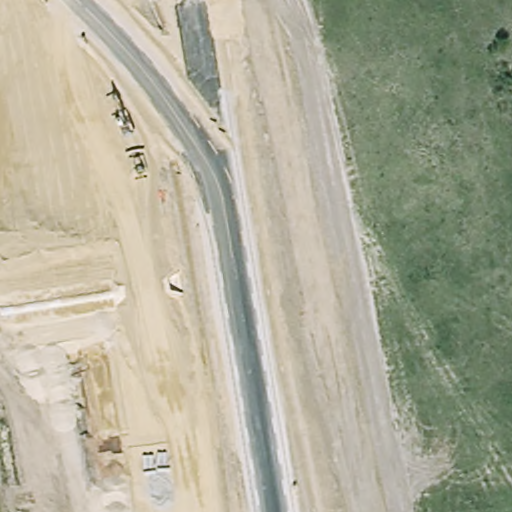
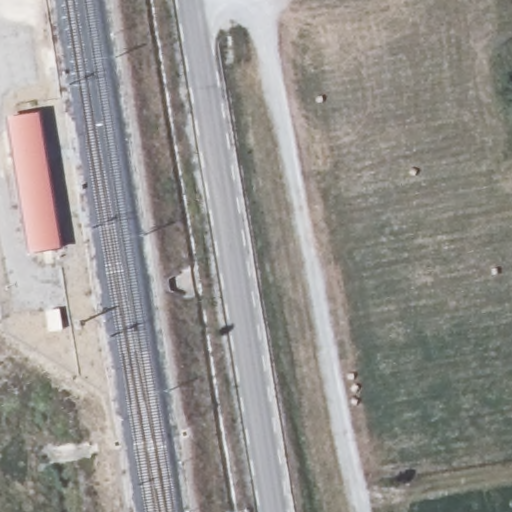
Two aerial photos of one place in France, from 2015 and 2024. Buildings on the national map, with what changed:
new [(61,250),(29,255),(4,119),(36,115),(61,250)]

